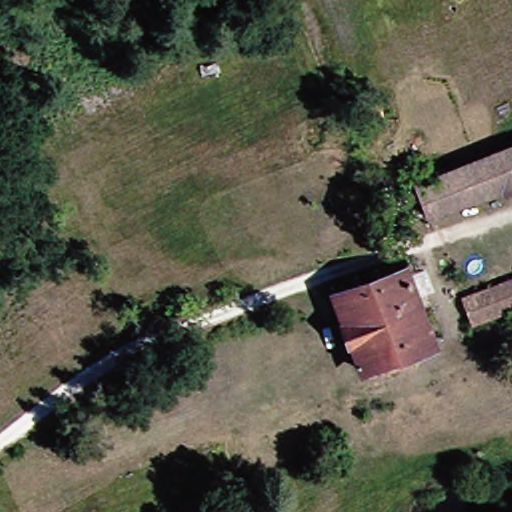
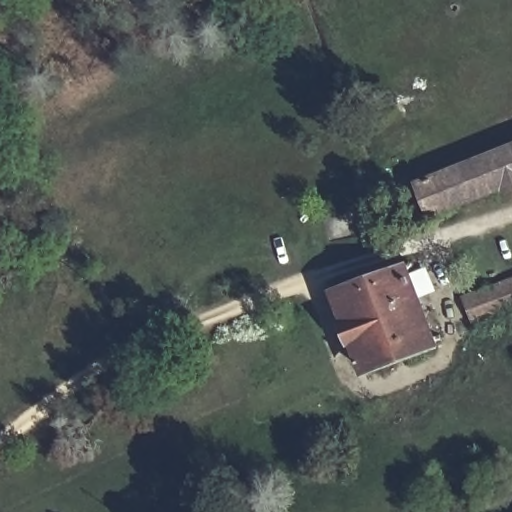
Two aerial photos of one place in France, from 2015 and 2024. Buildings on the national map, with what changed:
unchanged [(512,142),(512,177),(420,214),(411,185),(512,142)]
unchanged [(421,329),(425,350),(355,373),(326,275),(396,252),(421,329)]
unchanged [(463,327),(454,292),(512,272),(512,309),(463,327)]

